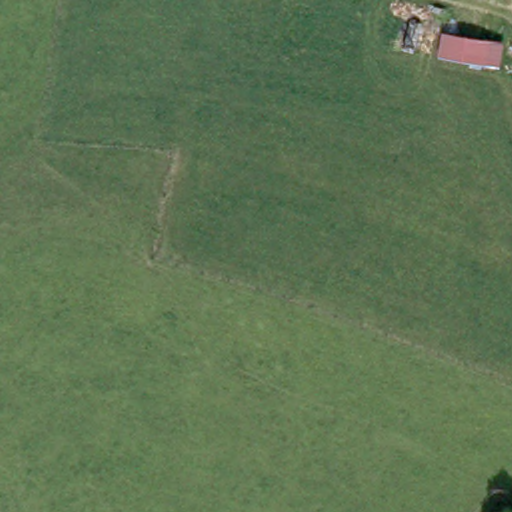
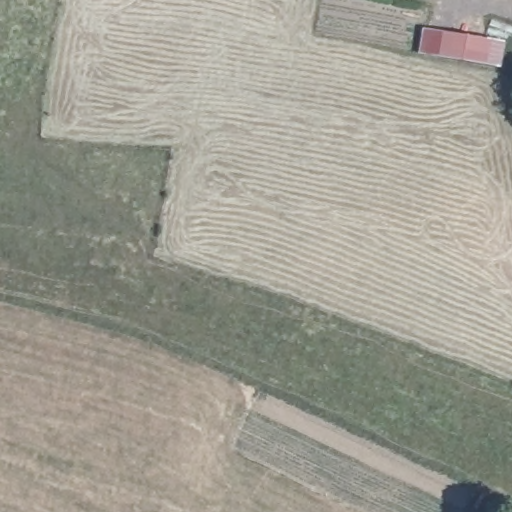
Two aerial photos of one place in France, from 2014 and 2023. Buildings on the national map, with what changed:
unchanged [(484,61),(445,60),(447,33),(486,36),(484,61)]

